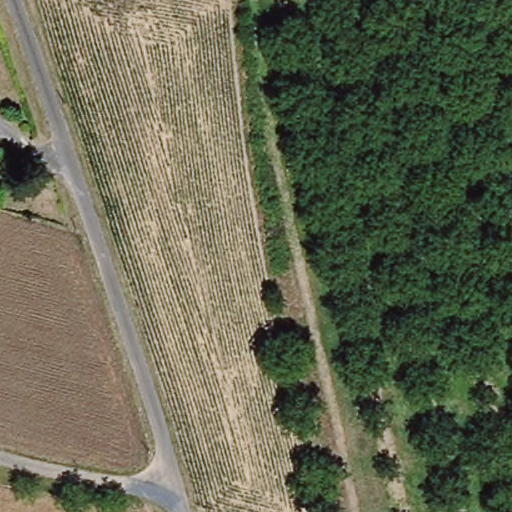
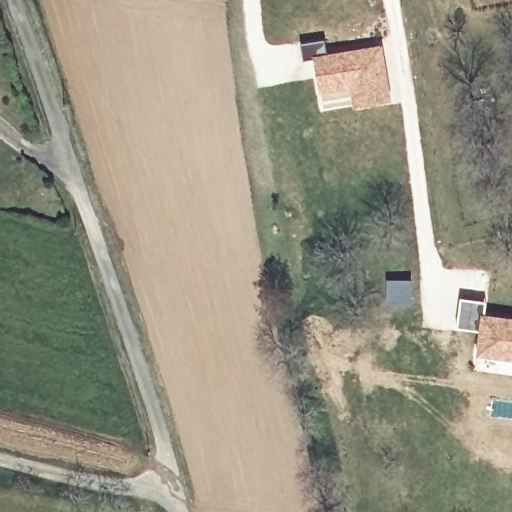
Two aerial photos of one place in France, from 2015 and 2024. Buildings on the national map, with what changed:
new [(324,38),(327,52),(380,44),(390,100),(351,107),(350,100),(321,106),(312,56),(302,58),(299,42),(324,38)]
new [(410,278),(410,305),(385,305),(385,278),(410,278)]
new [(456,327),(460,295),(485,299),(483,311),(512,316),(512,374),(472,369),(477,330),(456,327)]

